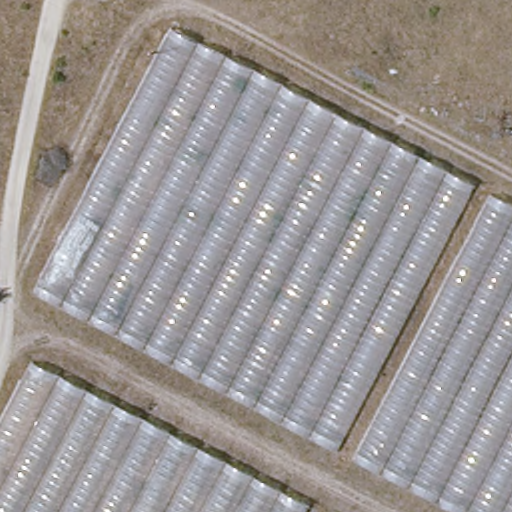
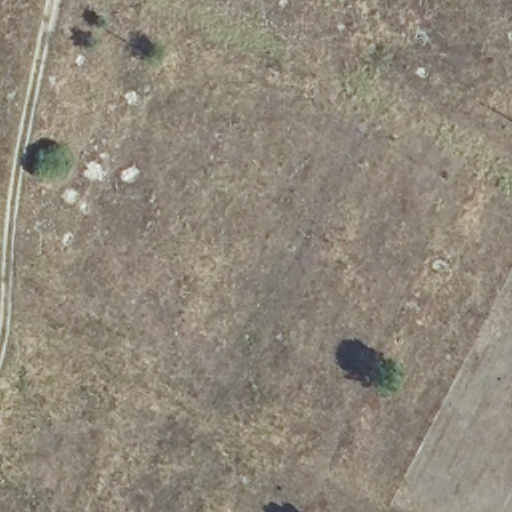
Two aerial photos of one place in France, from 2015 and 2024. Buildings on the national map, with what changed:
demolished [(191,36),(512,203),(512,512),(454,512),(51,303),(191,36)]
demolished [(252,475),(322,512),(0,512),(0,401),(23,355),(252,475)]

